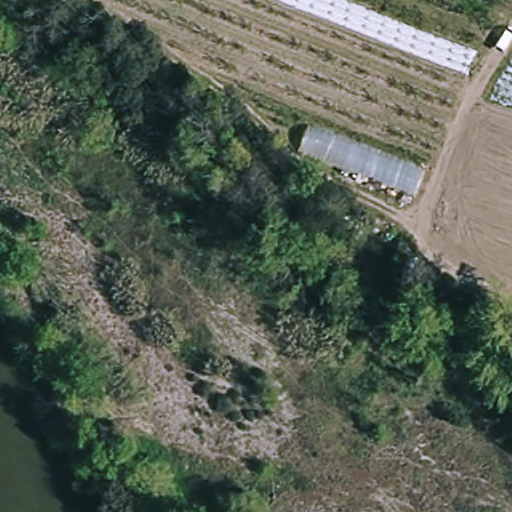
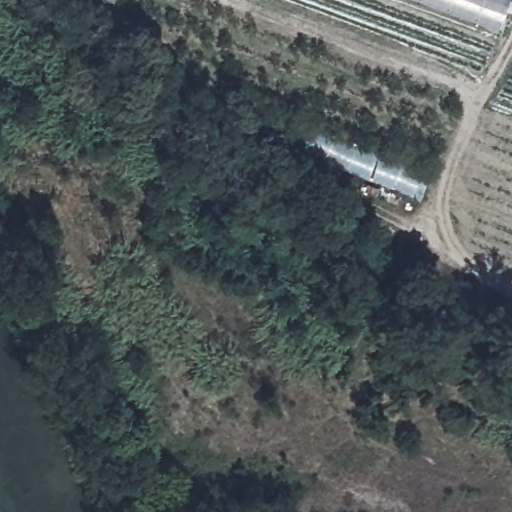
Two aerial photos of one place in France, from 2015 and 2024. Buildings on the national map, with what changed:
new [(496,32),(408,0),(509,0),(496,32)]
unchanged [(308,126),(418,166),(409,196),(298,150),(308,126)]

